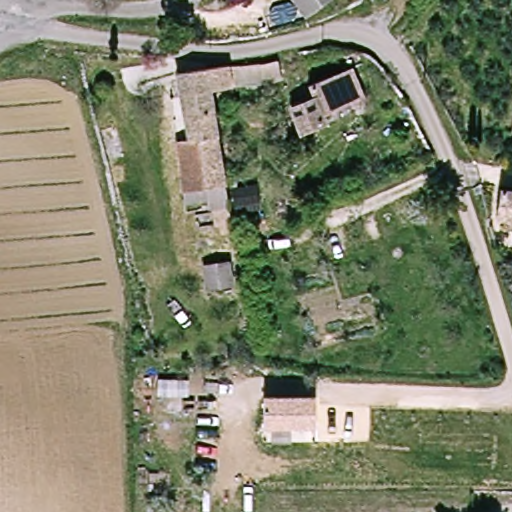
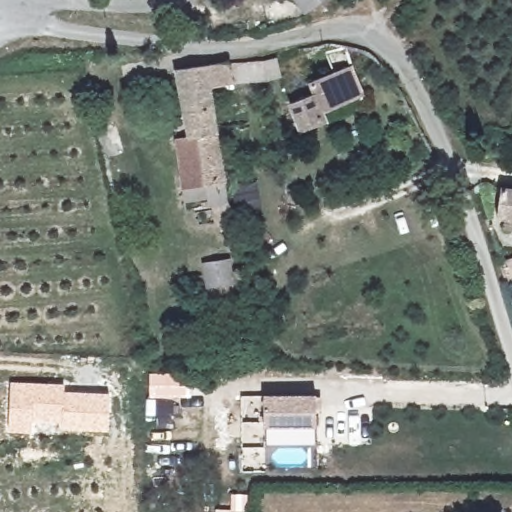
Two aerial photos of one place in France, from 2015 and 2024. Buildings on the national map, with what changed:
unchanged [(287,0),(323,0),(297,17),(287,0)]
unchanged [(278,57),(281,80),(229,87),(225,62),(278,57)]
unchanged [(225,62),(229,87),(208,90),(229,236),(216,237),(216,230),(210,231),(208,212),(200,212),(199,205),(207,204),(206,197),(180,199),(172,139),(185,136),(176,71),(225,62)]
unchanged [(361,97),(320,115),(326,127),(301,137),(286,106),(309,96),(305,86),(350,70),(361,97)]
unchanged [(497,187),(512,188),(512,226),(502,226),(503,216),(495,215),(497,187)]
unchanged [(233,289),(210,292),(207,266),(230,263),(233,289)]
new [(188,374),(188,398),(166,398),(166,402),(151,402),(150,373),(188,374)]
new [(107,430),(61,429),(61,422),(32,422),(32,432),(10,432),(11,382),(65,385),(65,392),(109,392),(107,430)]
unchanged [(290,442),(270,441),(269,428),(261,428),(260,396),(315,395),(313,429),(287,429),(290,442)]

